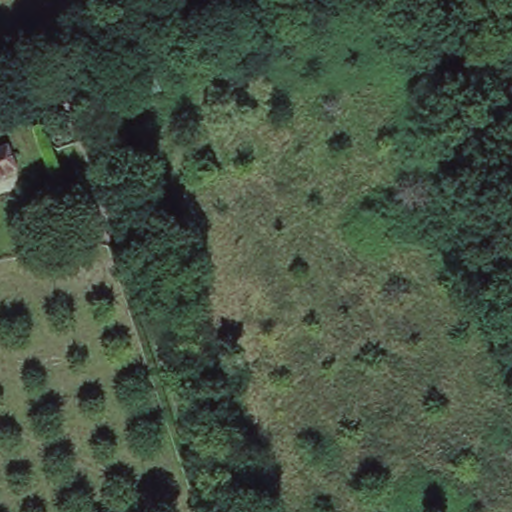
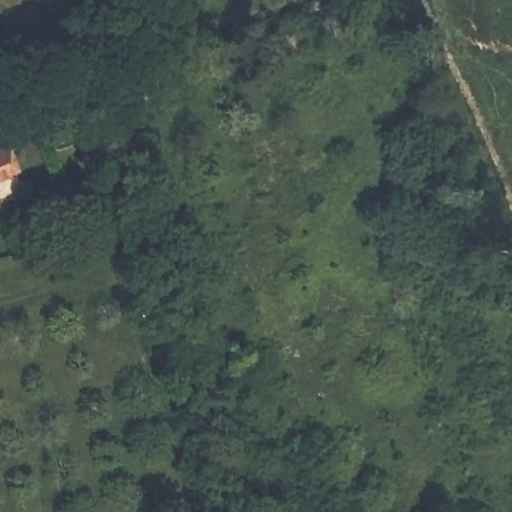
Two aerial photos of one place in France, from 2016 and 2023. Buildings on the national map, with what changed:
unchanged [(114,69),(124,97),(103,105),(94,80),(114,69)]
unchanged [(11,173),(0,178),(0,150),(3,149),(11,173)]

